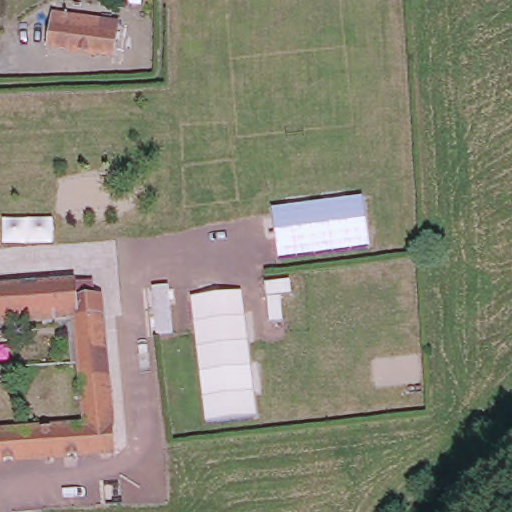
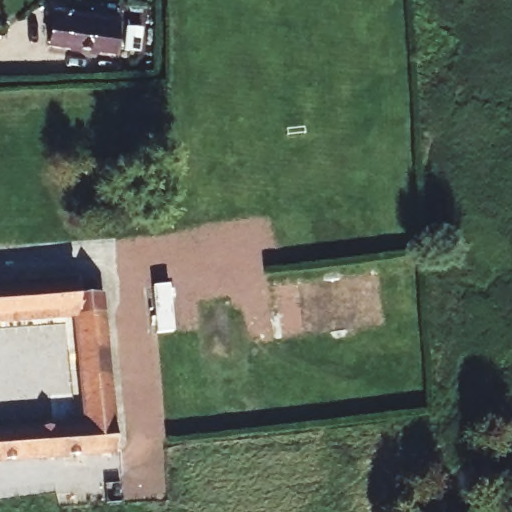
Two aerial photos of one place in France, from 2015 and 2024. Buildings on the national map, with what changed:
unchanged [(119,35),(124,36),(124,45),(117,45),(114,61),(50,53),(54,20),(120,28),(119,35)]
demolished [(370,191),(377,241),(277,256),(271,206),(370,191)]
demolished [(264,282),(295,279),(296,292),(278,295),(281,329),(269,330),(264,282)]
unchanged [(115,453),(0,462),(0,435),(85,428),(76,317),(0,322),(0,290),(75,284),(77,300),(102,299),(115,414),(115,453)]
unchanged [(170,284),(174,331),(157,332),(152,286),(170,284)]
demolished [(242,284),(251,412),(204,418),(192,291),(242,284)]

